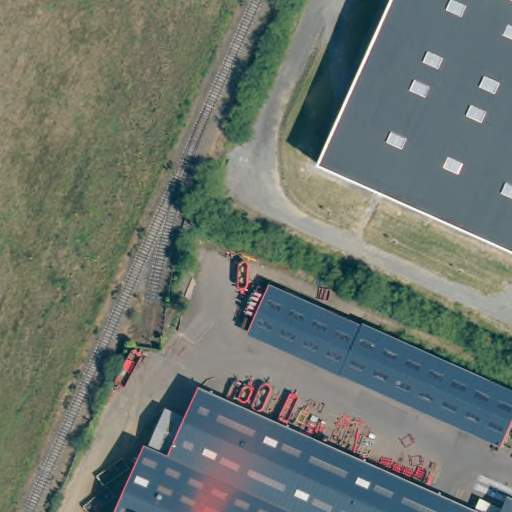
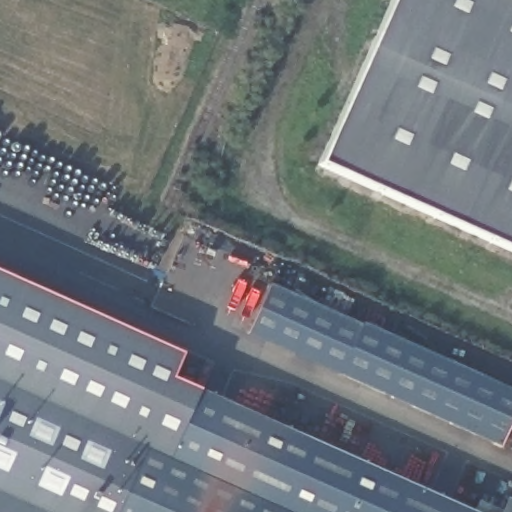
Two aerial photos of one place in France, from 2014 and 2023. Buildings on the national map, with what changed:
unchanged [(321,163),(395,0),(512,0),(512,247),(321,163)]
new [(171,379),(191,389),(177,420),(162,455),(147,450),(145,448),(116,512),(0,512),(0,273),(182,353),(171,379)]
unchanged [(512,395),(512,423),(500,450),(250,336),(272,287),(512,395)]
unchanged [(145,448),(147,450),(162,455),(177,420),(191,389),(467,512),(116,512),(145,448)]
unchanged [(500,498),(512,504),(512,512),(495,512),(500,498)]

